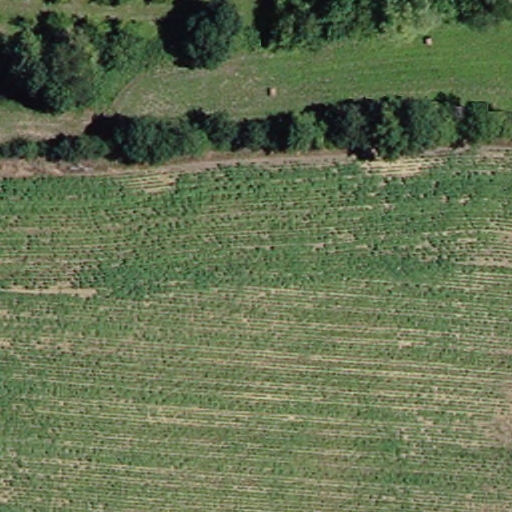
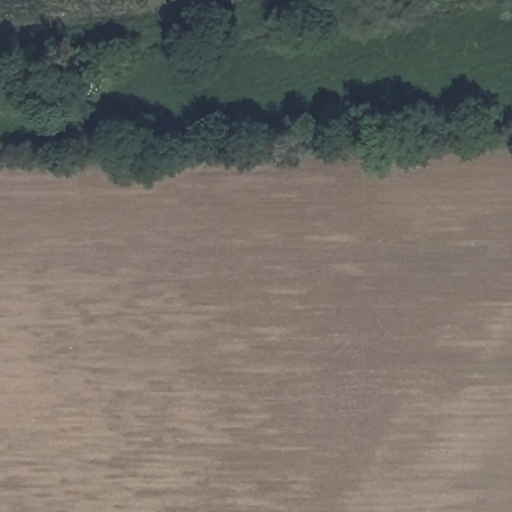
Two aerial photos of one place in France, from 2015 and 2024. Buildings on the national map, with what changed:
[]

